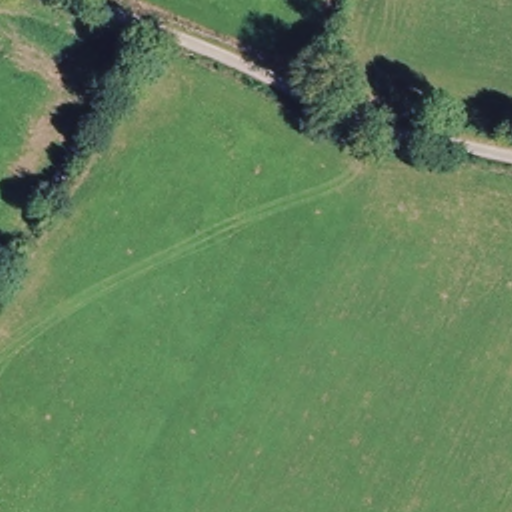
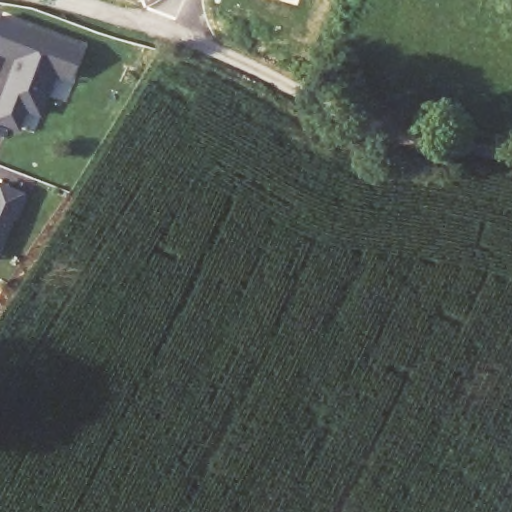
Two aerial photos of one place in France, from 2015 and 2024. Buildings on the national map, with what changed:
new [(16,127),(0,121),(0,96),(16,55),(7,52),(0,50),(0,16),(1,15),(80,45),(68,77),(53,72),(46,90),(30,132),(16,127)]
new [(26,192),(18,212),(15,211),(2,239),(0,244),(0,181),(26,192)]

